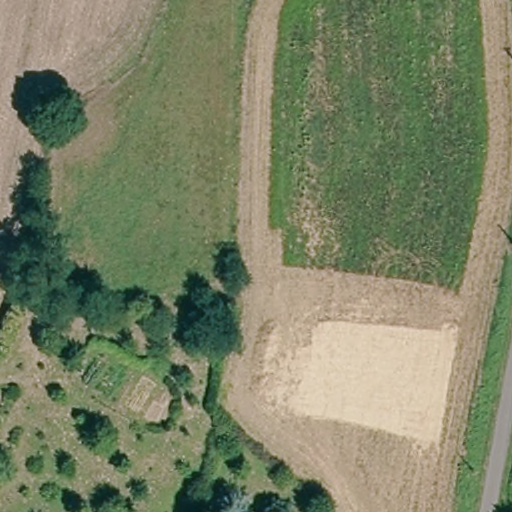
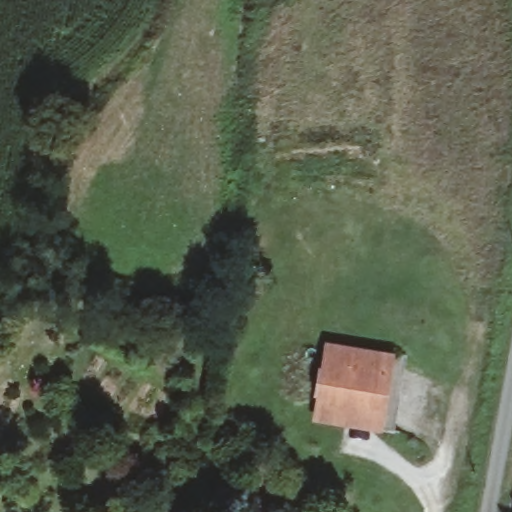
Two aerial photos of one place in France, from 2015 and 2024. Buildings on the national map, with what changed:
new [(313,420),(325,340),(395,351),(382,430),(313,420)]

